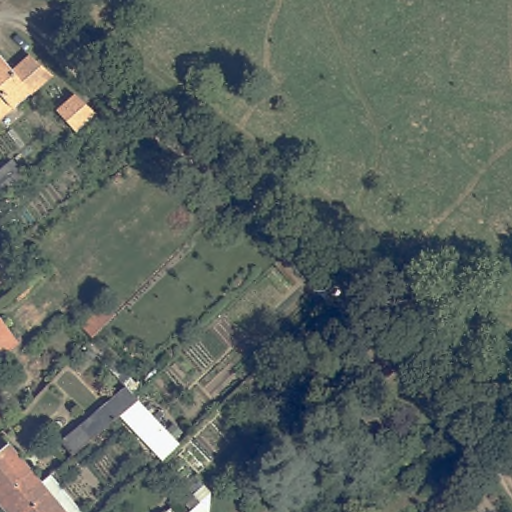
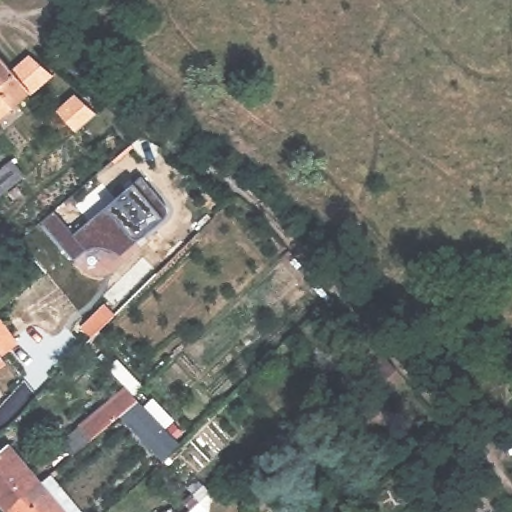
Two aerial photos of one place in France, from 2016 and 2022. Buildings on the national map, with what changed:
unchanged [(30,55),(53,75),(33,96),(31,95),(0,122),(0,57),(11,70),(30,55)]
unchanged [(75,130),(56,108),(74,93),(95,112),(75,130)]
unchanged [(0,167),(11,157),(24,172),(0,192),(0,167)]
new [(47,210),(67,232),(134,173),(160,202),(162,207),(160,213),(159,215),(115,254),(110,248),(102,245),(95,244),(87,245),(81,248),(69,259),(35,221),(47,210)]
unchanged [(89,336),(80,326),(85,322),(111,298),(119,306),(94,331),(90,336),(89,336)]
unchanged [(24,339),(7,351),(0,356),(0,314),(1,313),(24,339)]
unchanged [(366,353),(377,344),(395,362),(399,366),(386,377),(366,353)]
unchanged [(80,455),(67,439),(132,385),(141,395),(146,401),(128,415),(80,454),(80,455)]
unchanged [(167,460),(128,415),(146,401),(184,445),(167,460)]
unchanged [(0,418),(0,414),(2,417),(0,418)]
unchanged [(44,485),(11,512),(8,512),(0,503),(0,456),(11,446),(44,485)]
unchanged [(44,485),(55,475),(87,512),(11,512),(44,485)]
unchanged [(199,503),(189,487),(201,475),(218,501),(206,512),(187,512),(199,503)]
unchanged [(169,505),(175,512),(162,512),(169,505)]

